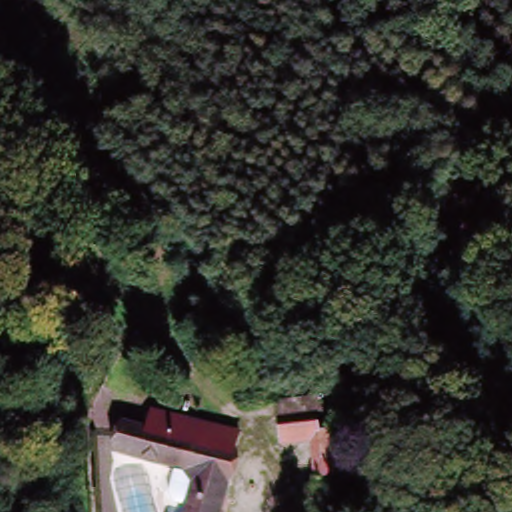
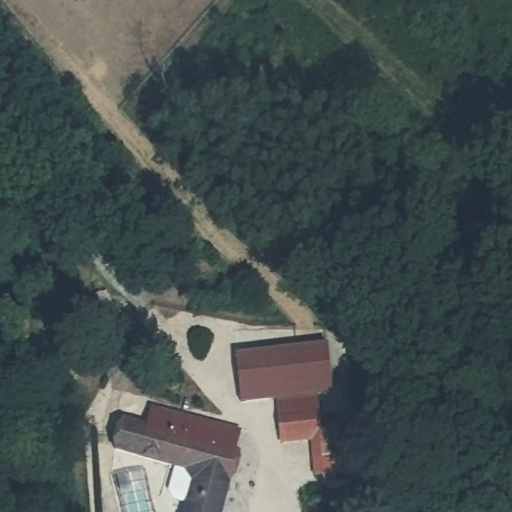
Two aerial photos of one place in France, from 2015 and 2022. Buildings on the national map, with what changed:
new [(235,354),(327,343),(336,392),(317,395),(274,400),(274,401),(240,404),(235,354)]
unchanged [(274,400),(317,395),(322,430),(332,430),(330,418),(353,415),(357,461),(343,464),(345,477),(314,482),(308,442),(278,444),(274,400)]
unchanged [(184,512),(194,475),(111,448),(119,424),(141,427),(146,409),(218,425),(210,443),(240,450),(223,512),(184,512)]

